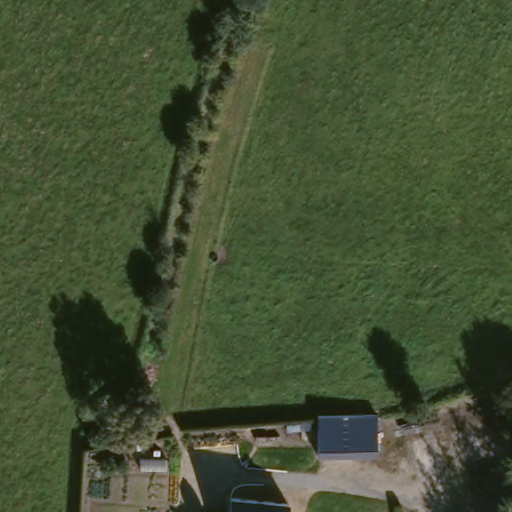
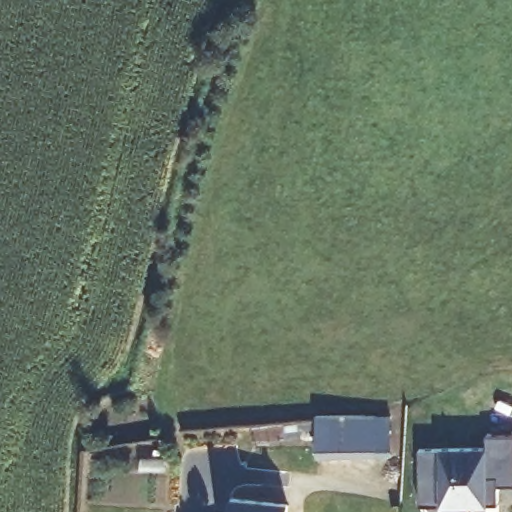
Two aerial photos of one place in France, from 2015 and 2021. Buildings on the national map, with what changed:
unchanged [(332,413),(373,410),(376,450),(316,455),(313,415),(332,413)]
new [(440,448),(440,445),(487,445),(487,436),(512,436),(512,485),(497,485),(498,505),(489,505),(468,506),(468,512),(442,512),(442,505),(422,503),(422,448),(440,448)]
unchanged [(229,498),(287,504),(286,512),(227,512),(229,498)]

